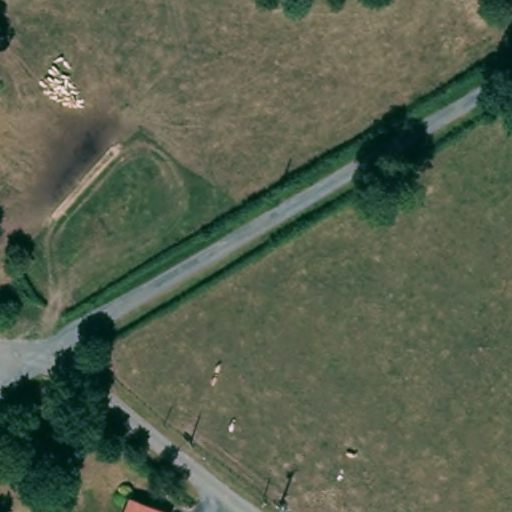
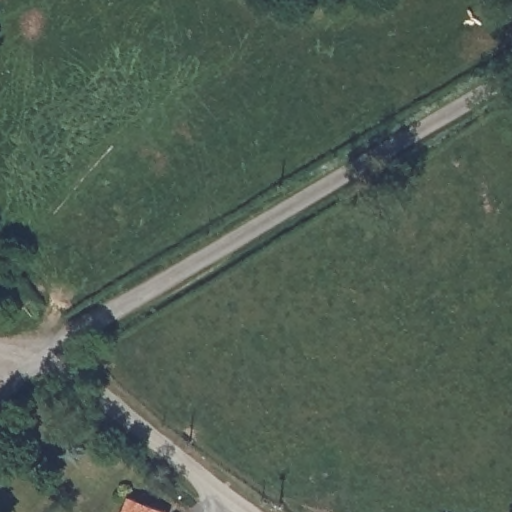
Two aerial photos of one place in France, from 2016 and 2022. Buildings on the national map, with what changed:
unchanged [(150,498),(178,512),(143,512),(150,498)]

